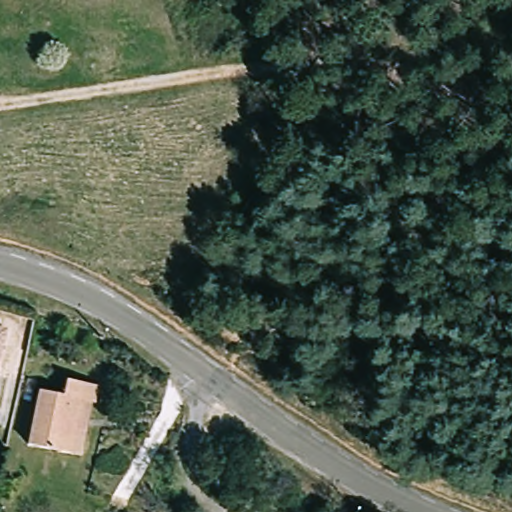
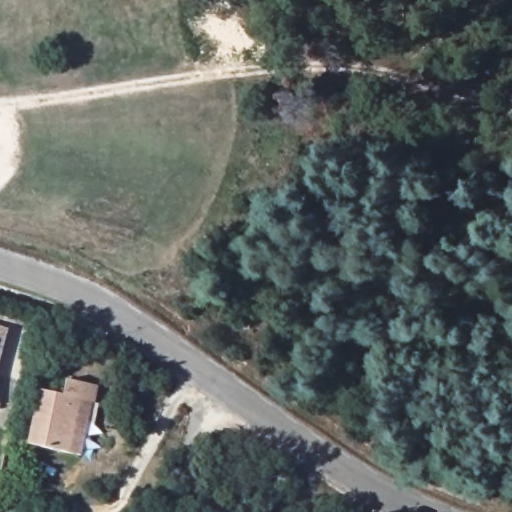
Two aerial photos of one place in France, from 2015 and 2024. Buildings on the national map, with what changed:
unchanged [(10,349),(0,395),(0,328),(13,331),(10,349)]
unchanged [(97,386),(93,403),(87,403),(73,457),(25,446),(38,389),(59,395),(62,378),(97,386)]

